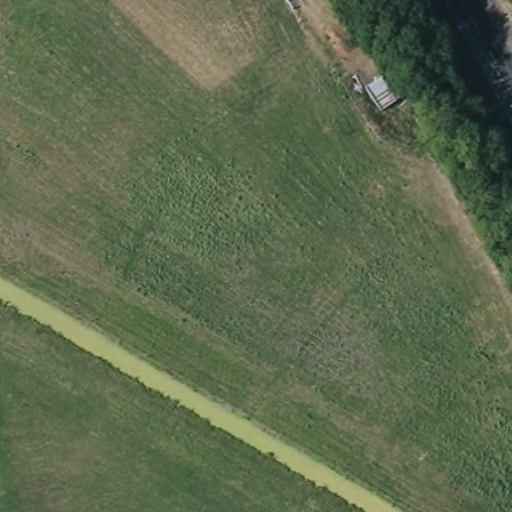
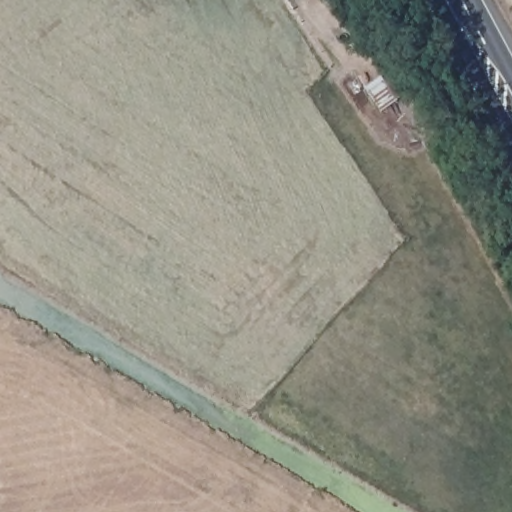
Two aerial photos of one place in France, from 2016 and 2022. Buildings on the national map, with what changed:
unchanged [(404,99),(383,117),(368,94),(390,78),(404,99)]

